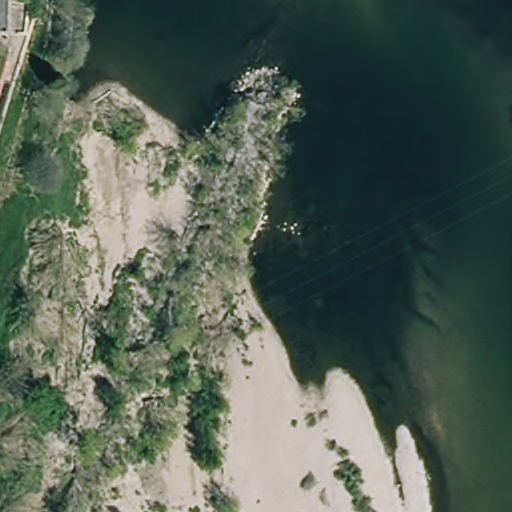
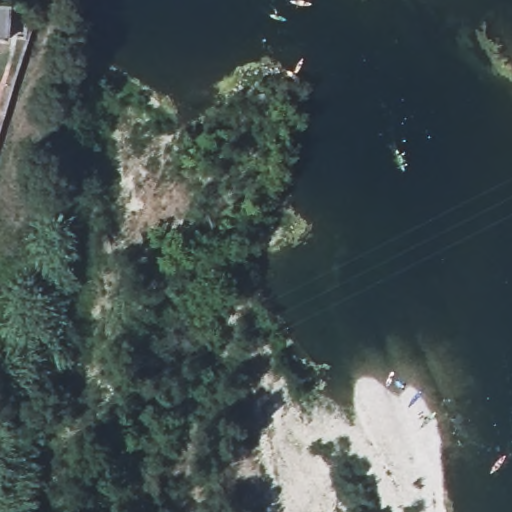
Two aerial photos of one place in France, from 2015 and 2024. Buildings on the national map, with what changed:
unchanged [(21,9),(22,0),(36,0),(37,12),(21,9)]
unchanged [(6,37),(0,37),(0,2),(9,2),(6,37)]

